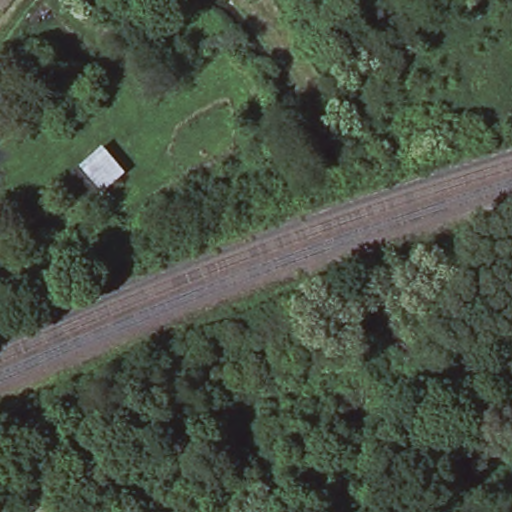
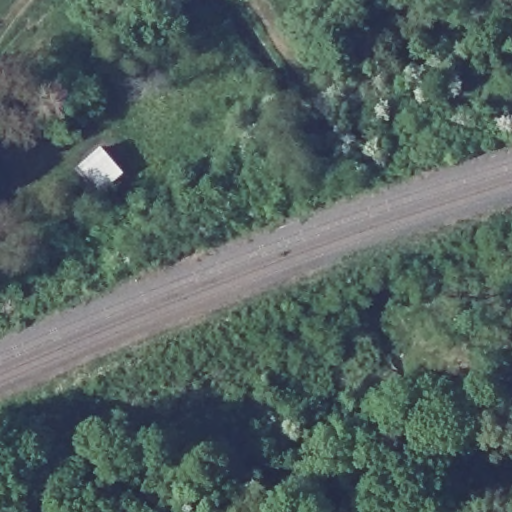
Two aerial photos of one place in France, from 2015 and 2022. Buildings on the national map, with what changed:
unchanged [(96,198),(74,169),(103,146),(127,173),(96,198)]

